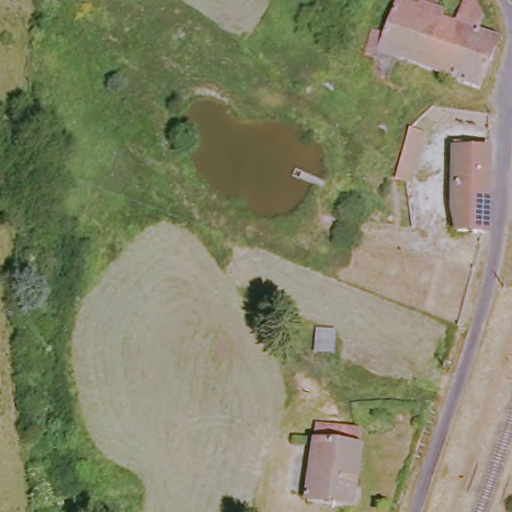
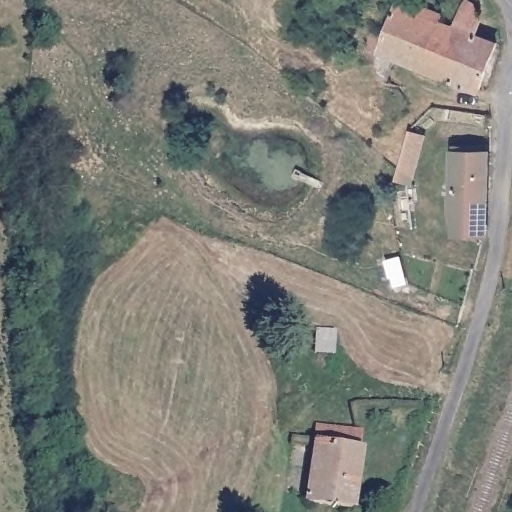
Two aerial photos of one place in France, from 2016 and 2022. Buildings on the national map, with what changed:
unchanged [(392,61),(380,85),(365,78),(391,5),(394,0),(413,0),(412,6),(439,16),(438,24),(451,28),(457,6),(462,2),(470,3),(473,12),(476,19),(472,36),(491,46),(476,91),(392,61)]
unchanged [(481,151),(481,175),(485,175),(484,208),(480,208),(477,236),(460,235),(450,210),(451,196),(438,197),(438,175),(452,175),(453,151),(481,151)]
unchanged [(336,330),(334,351),(316,348),(317,328),(336,330)]
unchanged [(351,509),(311,507),(316,447),(318,432),(356,435),(356,452),(359,452),(351,509)]

